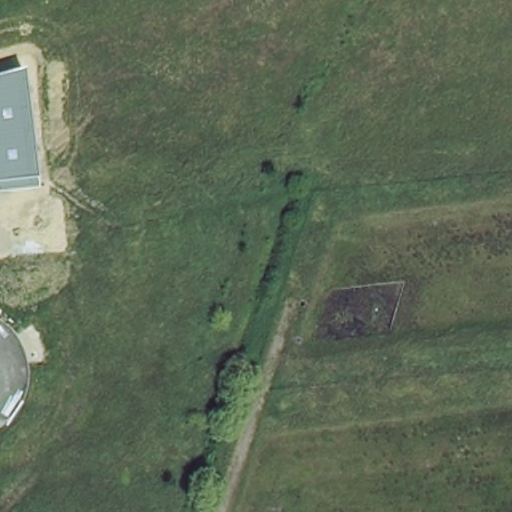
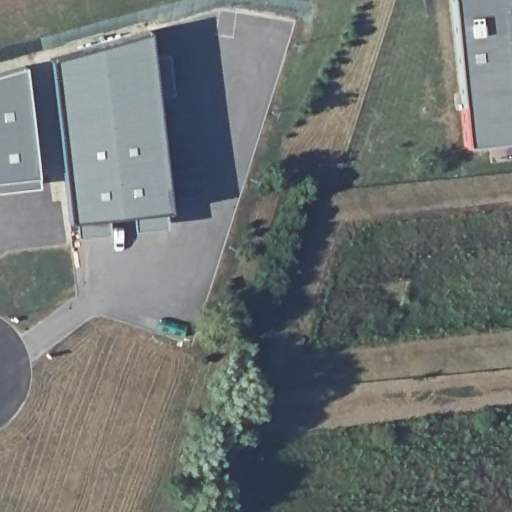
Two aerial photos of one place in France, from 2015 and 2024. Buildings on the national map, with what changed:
new [(512,0),(512,142),(467,146),(452,0),(512,0)]
new [(132,215),(107,218),(109,234),(77,238),(77,220),(71,222),(51,60),(150,31),(152,56),(167,54),(171,95),(156,96),(171,212),(166,212),(166,228),(132,232),(132,215)]
unchanged [(24,65),(37,176),(0,180),(0,72),(24,65)]

